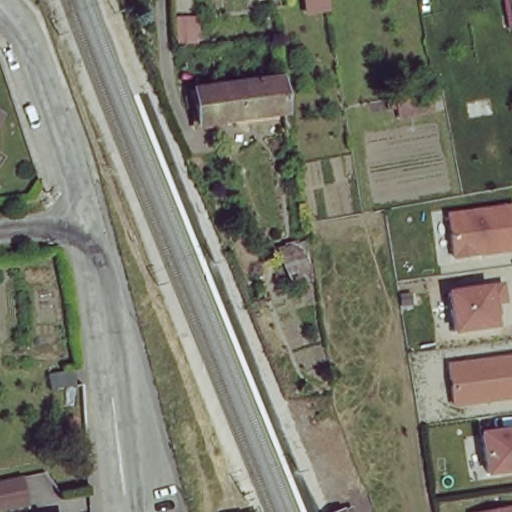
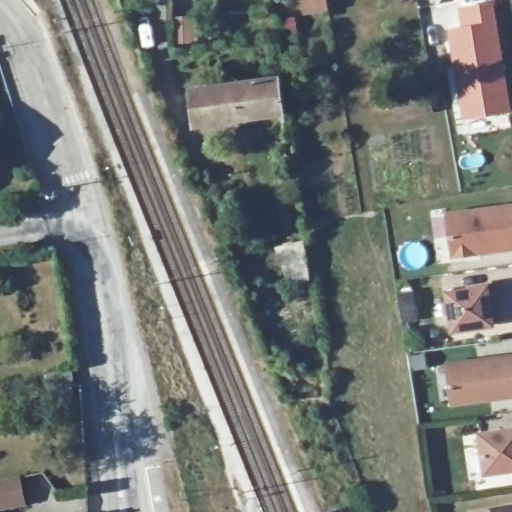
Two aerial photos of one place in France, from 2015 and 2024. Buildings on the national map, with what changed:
unchanged [(300,6),(299,0),(322,0),(322,2),(300,6)]
new [(455,6),(487,0),(492,0),(511,111),(460,120),(445,27),(459,25),(455,6)]
unchanged [(195,15),(197,43),(180,45),(179,17),(195,15)]
unchanged [(239,105),(244,104),(241,84),(280,79),(285,115),(242,120),(239,105)]
unchanged [(199,126),(193,91),(241,84),(244,104),(239,105),(242,120),(199,126)]
unchanged [(0,122),(0,115),(3,117),(0,122)]
unchanged [(0,163),(0,154),(5,157),(0,163)]
unchanged [(452,260),(445,212),(512,203),(512,251),(452,260)]
unchanged [(305,240),(310,281),(292,285),(276,247),(305,240)]
unchanged [(504,282),(507,302),(493,305),(497,328),(450,336),(445,290),(488,284),(504,282)]
unchanged [(450,407),(444,362),(512,354),(512,400),(450,407)]
unchanged [(484,477),(477,433),(477,431),(512,427),(512,473),(484,477)]
unchanged [(0,509),(0,480),(22,476),(28,503),(11,507),(0,509)]
unchanged [(353,512),(328,512),(350,504),(353,512)]
unchanged [(480,511),(480,507),(507,505),(508,512),(480,512),(480,511)]
demolished [(256,510),(256,512),(250,512),(256,510)]

